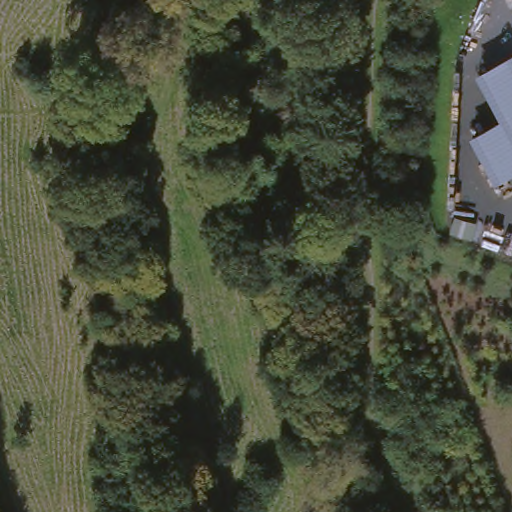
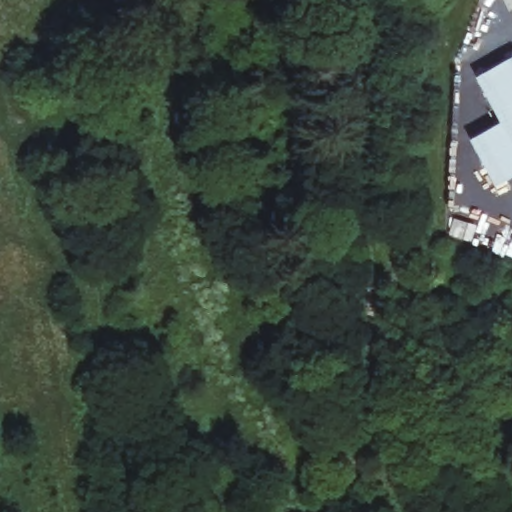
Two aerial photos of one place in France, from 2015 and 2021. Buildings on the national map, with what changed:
unchanged [(472,133),(504,116),(478,70),(512,56),(512,173),(498,180),(472,133)]

